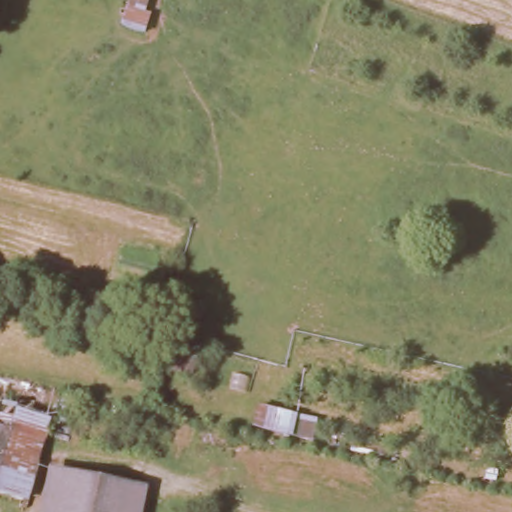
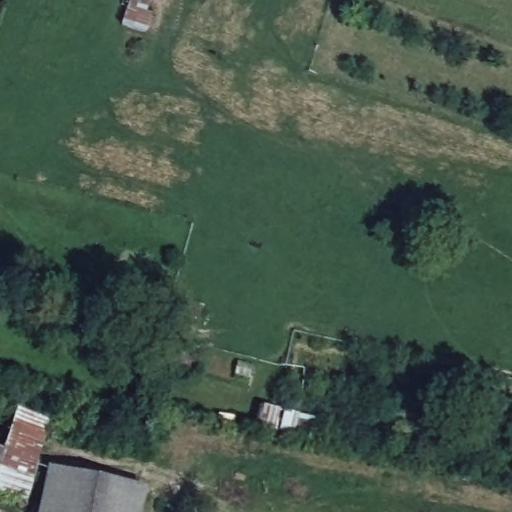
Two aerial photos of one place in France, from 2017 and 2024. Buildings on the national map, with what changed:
unchanged [(133,0),(152,0),(147,15),(130,8),(133,0)]
unchanged [(189,305),(203,309),(200,321),(183,317),(189,305)]
unchanged [(175,357),(197,362),(192,379),(172,374),(175,357)]
unchanged [(28,502),(0,495),(0,377),(58,392),(28,502)]
unchanged [(272,412),(323,426),(317,447),(267,431),(272,412)]
unchanged [(143,512),(36,512),(44,463),(148,489),(143,512)]

